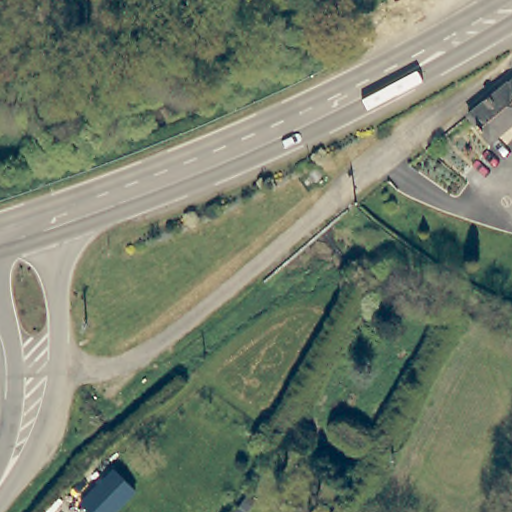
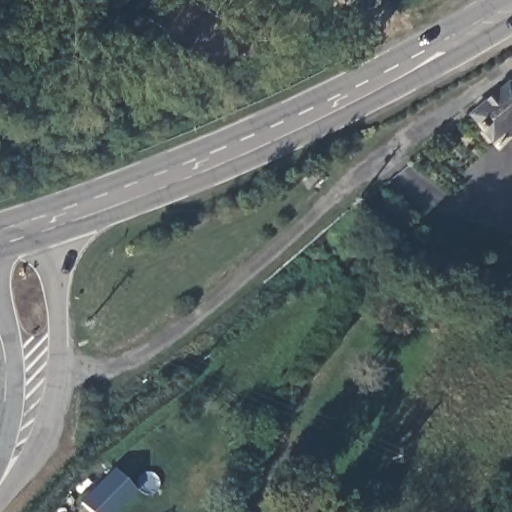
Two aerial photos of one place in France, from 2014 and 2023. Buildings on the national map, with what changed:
unchanged [(512,77),(512,124),(489,142),(465,115),(512,77)]
unchanged [(117,512),(87,512),(79,505),(113,470),(137,493),(117,512)]

